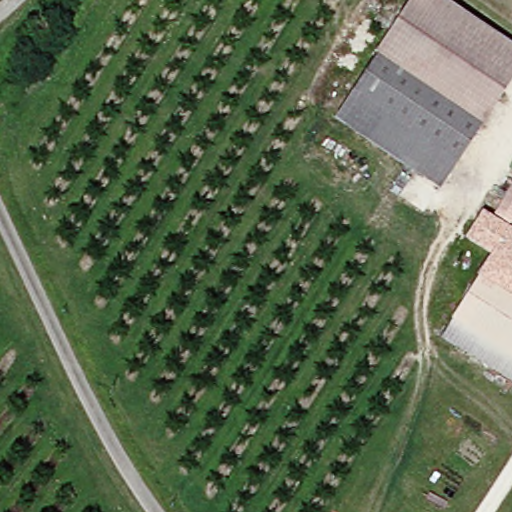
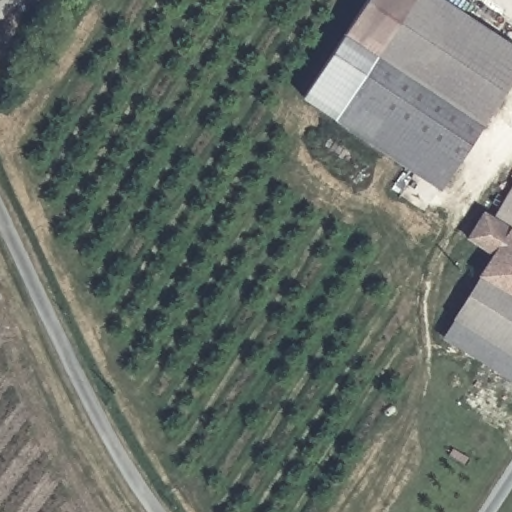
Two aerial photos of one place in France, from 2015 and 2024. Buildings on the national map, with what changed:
new [(365,0),(412,0),(376,54),(336,116),(302,95),(365,0)]
unchanged [(445,0),(512,43),(512,79),(483,123),(376,54),(412,0),(445,0)]
unchanged [(376,54),(483,123),(443,185),(336,116),(376,54)]
unchanged [(485,254),(459,239),(476,212),(486,218),(512,179),(512,359),(449,319),(485,254)]
unchanged [(449,319),(512,359),(512,384),(438,337),(449,319)]

